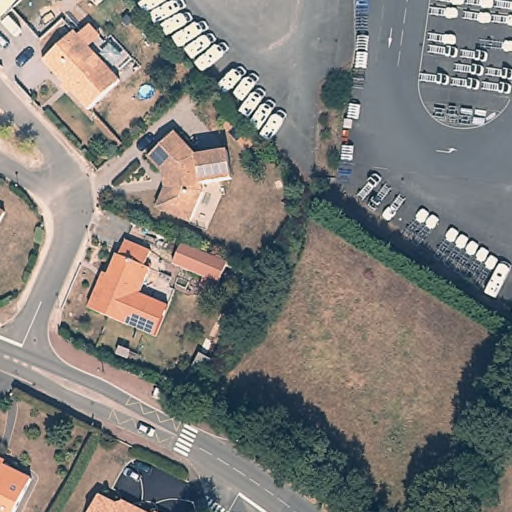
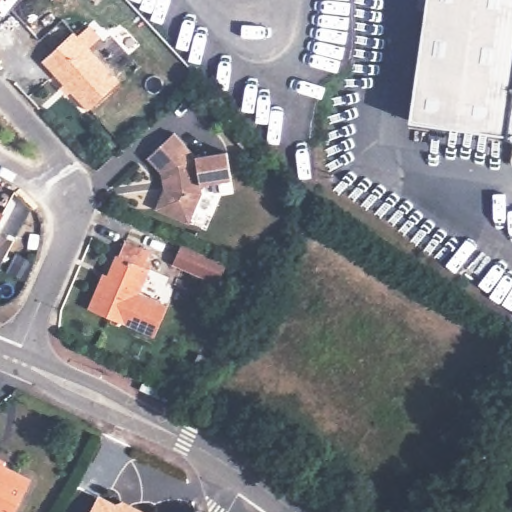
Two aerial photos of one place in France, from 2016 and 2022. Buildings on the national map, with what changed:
new [(512,111),(509,132),(409,122),(427,0),(512,0),(512,111)]
unchanged [(117,81),(87,111),(43,64),(73,35),(117,81)]
unchanged [(512,111),(512,133),(509,132),(512,111)]
unchanged [(200,157),(230,151),(235,179),(206,185),(210,196),(196,229),(162,214),(169,197),(167,176),(152,160),(175,134),(200,157)]
unchanged [(6,212),(0,225),(0,208),(6,212)]
unchanged [(154,270),(143,295),(130,328),(89,310),(100,285),(104,287),(117,258),(126,239),(142,245),(154,250),(147,267),(154,270)]
unchanged [(231,268),(223,286),(176,267),(184,249),(231,268)]
unchanged [(155,337),(130,328),(143,295),(167,306),(155,337)]
unchanged [(0,512),(0,459),(5,461),(2,468),(32,484),(18,512),(0,512)]
unchanged [(130,512),(90,512),(97,497),(130,512)]
unchanged [(144,512),(142,512),(142,511),(144,512)]

